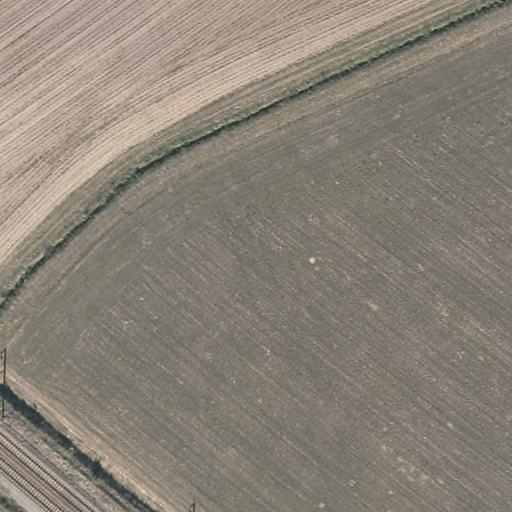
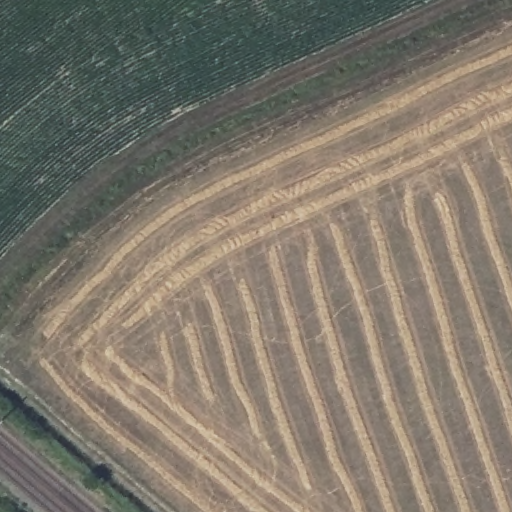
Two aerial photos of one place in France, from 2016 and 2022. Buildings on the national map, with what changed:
[]

